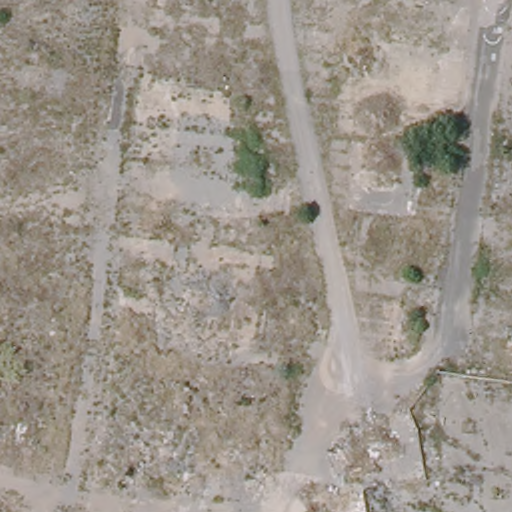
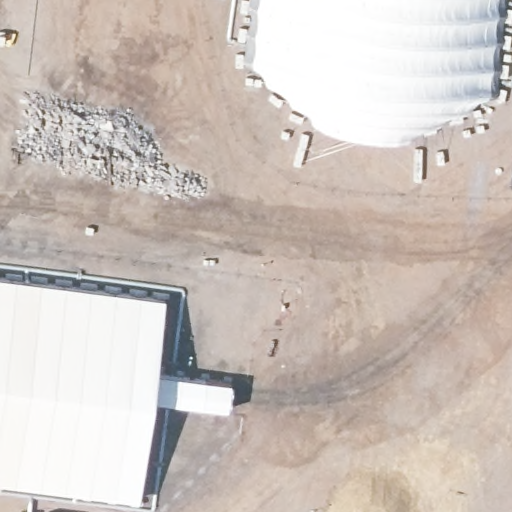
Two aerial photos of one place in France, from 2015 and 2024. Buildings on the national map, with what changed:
new [(492,90),(490,97),(487,101),(480,104),(474,110),(468,117),(462,117),(454,117),(444,120),(443,124),(438,127),(427,126),(423,127),(421,130),(419,134),(414,136),(318,126),(311,119),(306,111),(299,109),(294,107),(290,103),(284,92),(279,90),(270,85),(265,82),(263,76),(261,72),(256,67),(249,60),(258,0),(504,0),(492,90)]
new [(166,289),(156,372),(152,399),(138,505),(101,500),(54,493),(0,485),(0,263),(45,269),(166,289)]
new [(156,372),(231,381),(227,410),(152,399),(156,372)]

